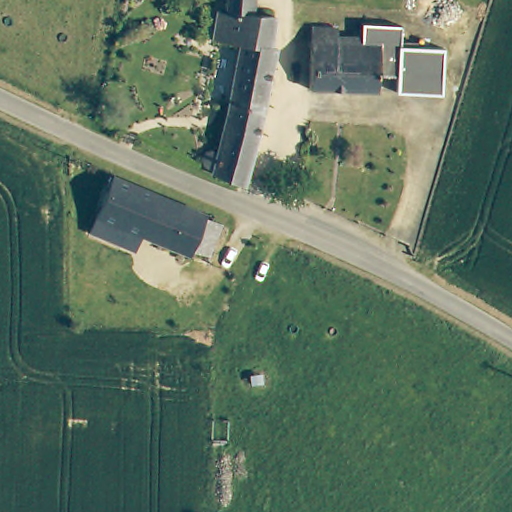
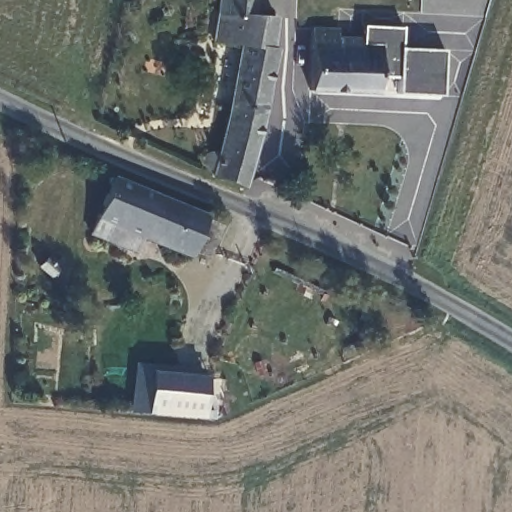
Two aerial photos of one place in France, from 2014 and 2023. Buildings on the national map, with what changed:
unchanged [(226,12),(227,0),(254,0),(254,3),(270,6),(269,18),(226,12)]
unchanged [(275,19),(272,51),(277,52),(263,140),(246,183),(219,172),(223,151),(243,42),(214,38),(213,38),(218,10),(226,12),(269,18),(275,19)]
unchanged [(427,92),(414,92),(401,91),(401,75),(381,74),(381,90),(308,86),(308,38),(309,24),(326,25),(335,26),(335,37),(365,39),(366,21),(406,23),(404,41),(404,45),(417,45),(431,46),(447,47),(444,93),(427,92)]
unchanged [(207,263),(189,256),(188,259),(139,238),(133,253),(89,235),(115,175),(204,218),(203,221),(220,228),(207,263)]
new [(203,419),(130,412),(134,361),(208,368),(203,419)]

